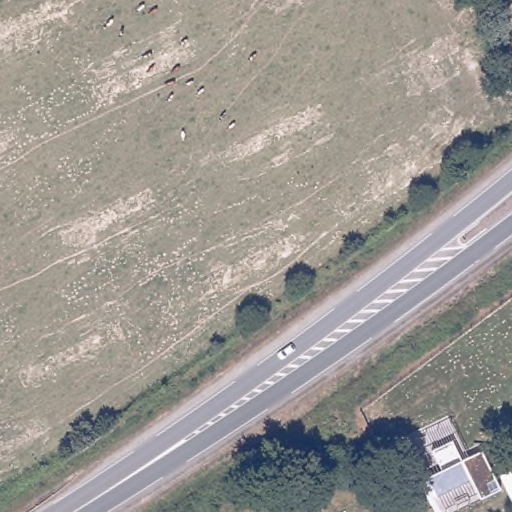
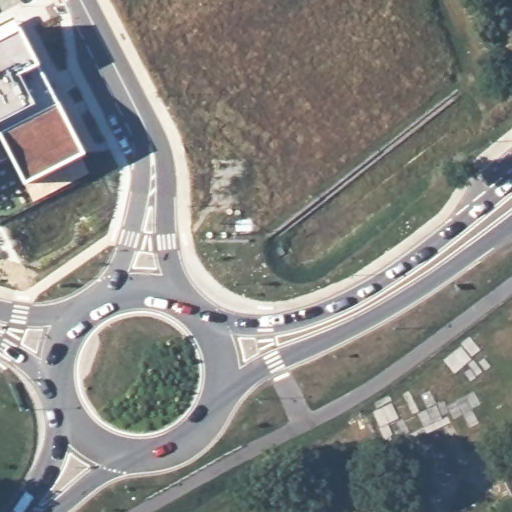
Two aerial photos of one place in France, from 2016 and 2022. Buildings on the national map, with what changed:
new [(34,65),(79,151),(20,184),(7,159),(0,162),(0,36),(16,29),(34,65)]

